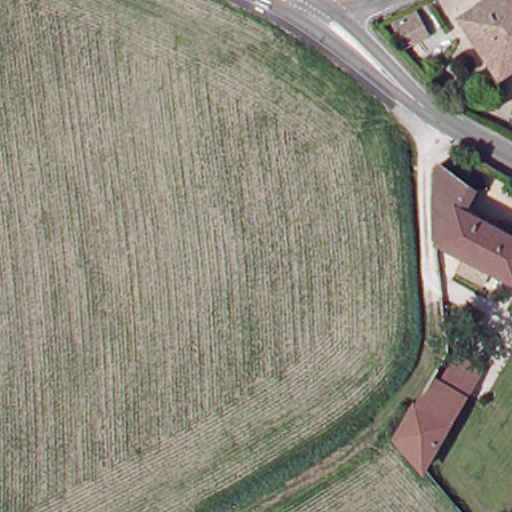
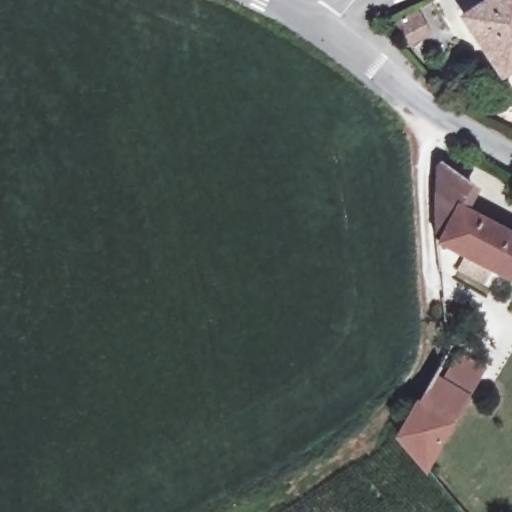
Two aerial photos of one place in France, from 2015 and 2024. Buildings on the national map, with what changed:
unchanged [(499,0),(512,0),(512,72),(508,75),(472,18),(499,0)]
unchanged [(400,49),(387,23),(419,8),(429,35),(400,49)]
unchanged [(443,198),(444,172),(449,168),(480,190),(467,213),(512,237),(512,280),(502,274),(493,291),(465,277),(474,260),(443,243),(443,198)]
unchanged [(431,372),(441,378),(456,351),(482,367),(464,396),(424,464),(414,452),(398,432),(431,372)]

